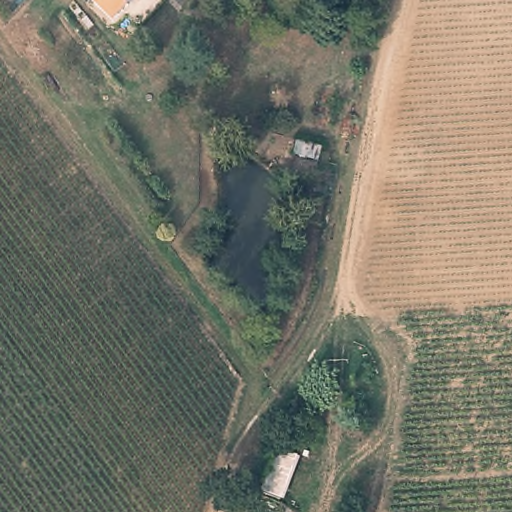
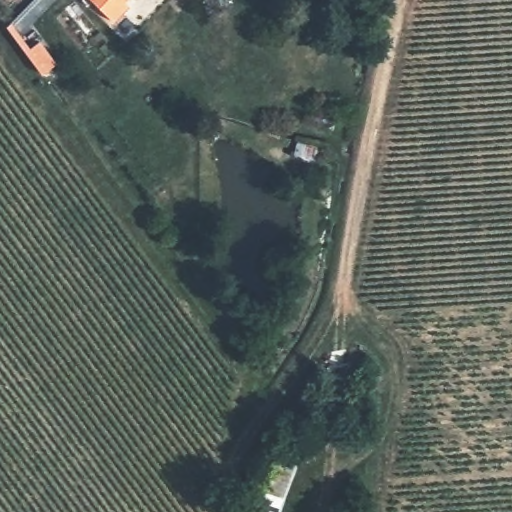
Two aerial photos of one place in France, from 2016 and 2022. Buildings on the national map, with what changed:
unchanged [(128,0),(111,17),(94,0),(128,0)]

